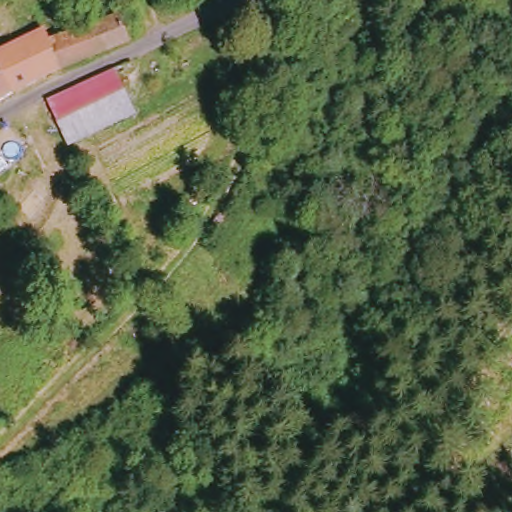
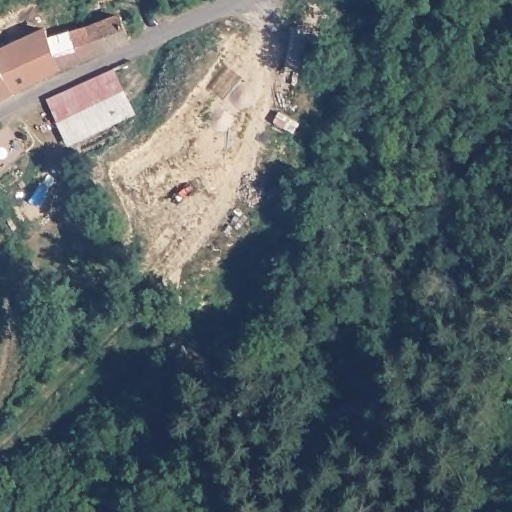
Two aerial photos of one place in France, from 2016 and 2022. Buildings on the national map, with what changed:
unchanged [(54,37),(130,14),(135,29),(120,40),(58,66),(54,37)]
unchanged [(0,62),(0,49),(48,25),(54,37),(58,66),(15,90),(0,62)]
unchanged [(15,90),(0,99),(0,62),(15,90)]
unchanged [(121,68),(130,92),(62,124),(48,102),(121,68)]

